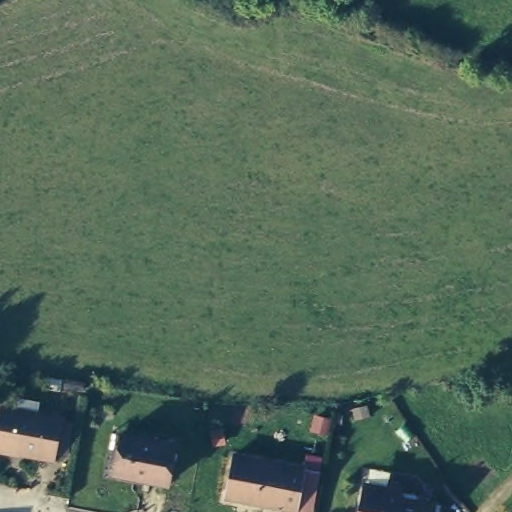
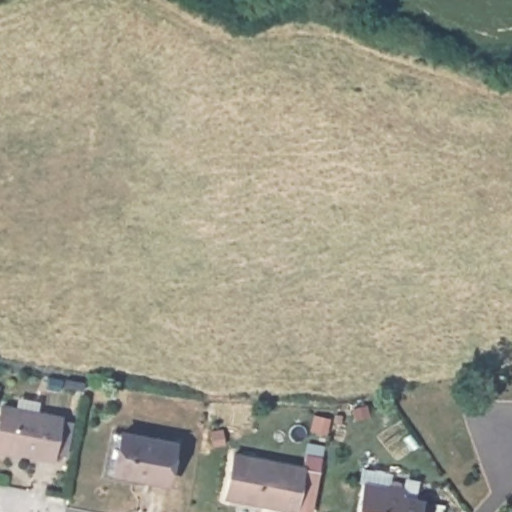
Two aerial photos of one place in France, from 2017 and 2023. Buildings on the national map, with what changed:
unchanged [(58,453),(0,443),(0,438),(7,399),(66,410),(58,453)]
unchanged [(120,472),(110,470),(119,425),(129,427),(183,439),(175,477),(144,470),(142,477),(120,472)]
unchanged [(282,502),(228,491),(237,449),(306,463),(300,498),(298,505),(282,502)]
unchanged [(392,487),(401,489),(400,496),(425,500),(422,512),(362,512),(367,482),(392,487)]

